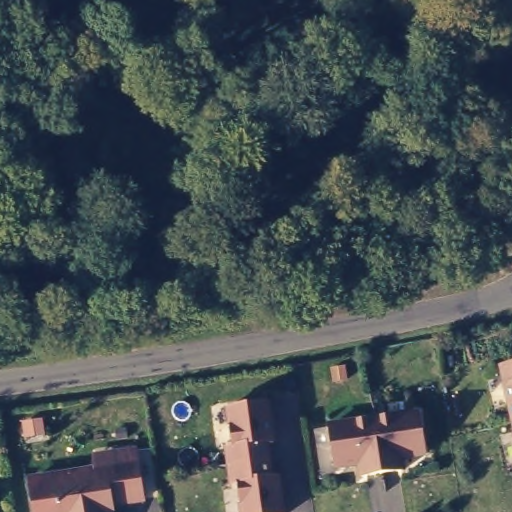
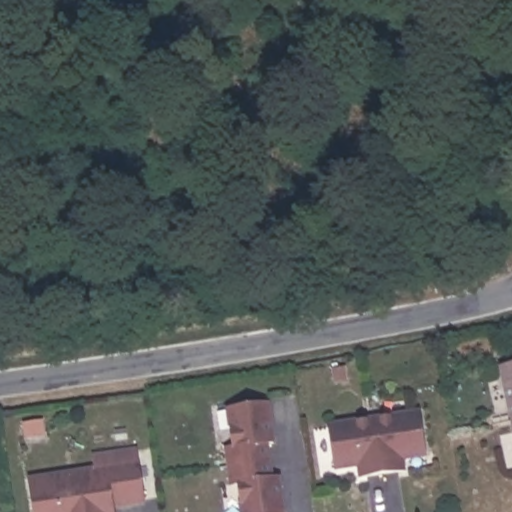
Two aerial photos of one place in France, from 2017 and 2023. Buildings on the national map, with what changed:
unchanged [(512,367),(512,429),(499,369),(512,367)]
unchanged [(236,486),(227,487),(224,444),(232,444),(228,404),(267,399),(275,441),(267,442),(272,474),(279,473),(283,512),(239,512),(236,486)]
unchanged [(330,424),(419,409),(426,454),(402,459),(403,469),(359,475),(357,464),(335,467),(330,424)]
unchanged [(28,474),(104,461),(102,451),(134,447),(145,501),(114,506),(114,512),(34,512),(28,474)]

